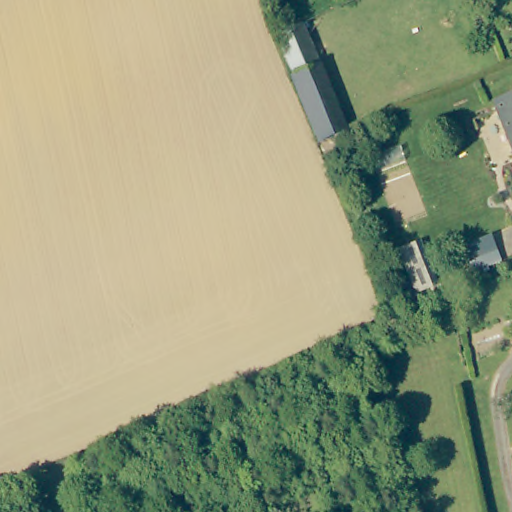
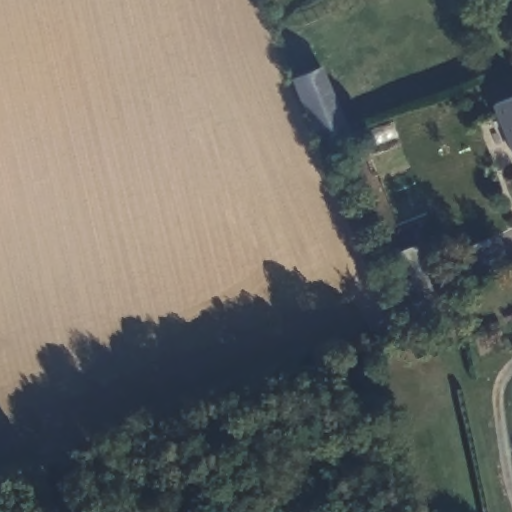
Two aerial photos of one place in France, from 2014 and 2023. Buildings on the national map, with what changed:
unchanged [(320,68),(295,79),(286,56),(278,37),(279,37),(303,28),(320,68)]
unchanged [(348,131),(319,143),(293,80),(295,79),(320,68),(348,131)]
unchanged [(494,102),(512,94),(512,147),(494,102)]
unchanged [(498,254),(472,266),(465,250),(491,239),(498,254)]

